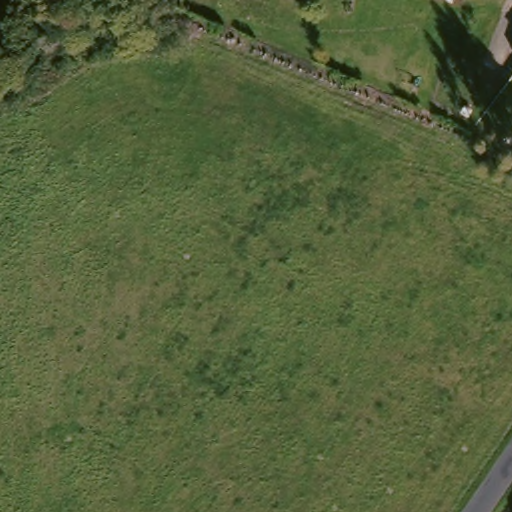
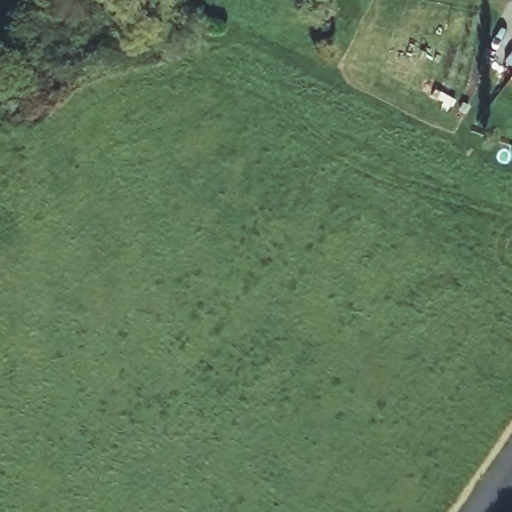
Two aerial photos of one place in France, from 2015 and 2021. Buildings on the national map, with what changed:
[]

